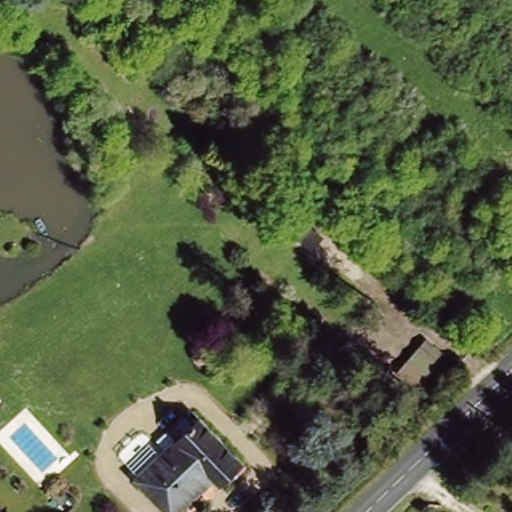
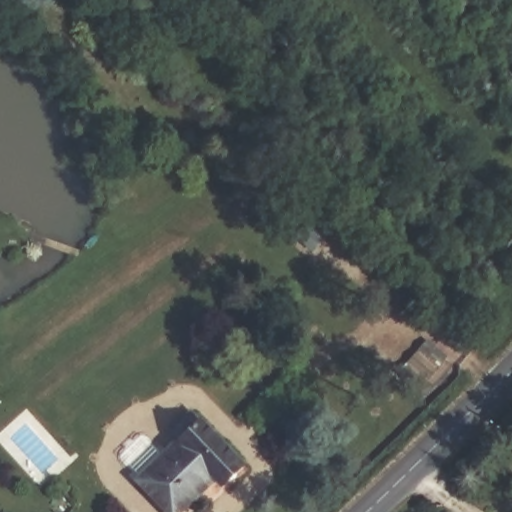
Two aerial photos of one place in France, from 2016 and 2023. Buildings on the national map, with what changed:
unchanged [(185,442),(173,432),(192,411),(246,461),(228,482),(215,470),(178,512),(147,484),(185,442)]

